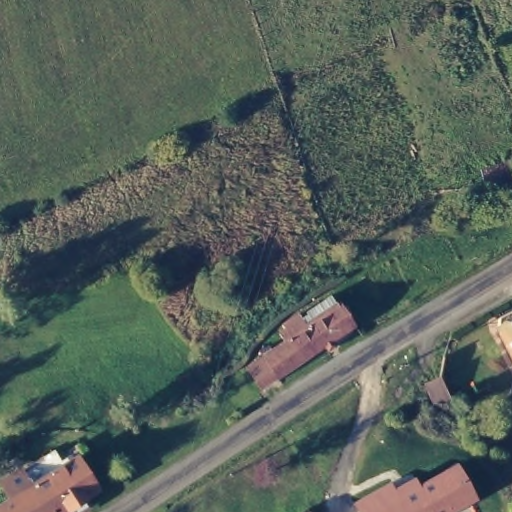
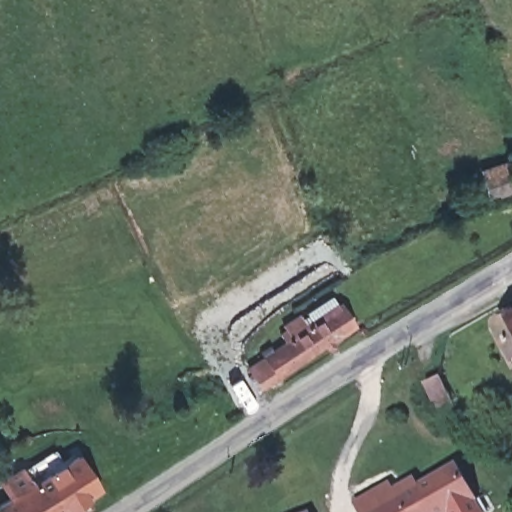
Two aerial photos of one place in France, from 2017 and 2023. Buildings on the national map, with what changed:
unchanged [(287,337),(283,329),(288,325),(286,323),(298,314),(305,325),(311,320),(309,311),(334,295),(339,302),(353,323),(332,335),(334,340),(333,343),(328,345),(326,341),(261,383),(248,364),(287,337)]
unchanged [(500,322),(499,319),(501,317),(502,315),(504,314),(507,313),(509,312),(511,311),(512,311),(512,352),(498,329),(502,326),(500,322)]
unchanged [(433,408),(422,381),(438,374),(448,400),(433,408)]
unchanged [(0,506),(0,502),(34,482),(26,469),(48,456),(56,466),(79,454),(101,488),(84,499),(86,504),(76,511),(73,507),(64,512),(3,512),(0,506)]
unchanged [(387,483),(395,496),(453,464),(469,494),(454,505),(454,510),(450,512),(362,512),(356,501),(387,483)]

